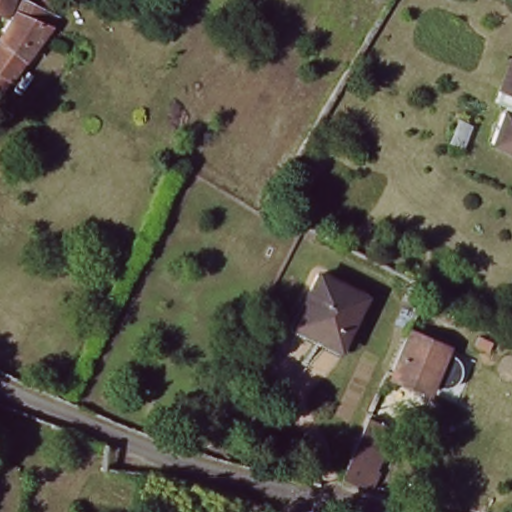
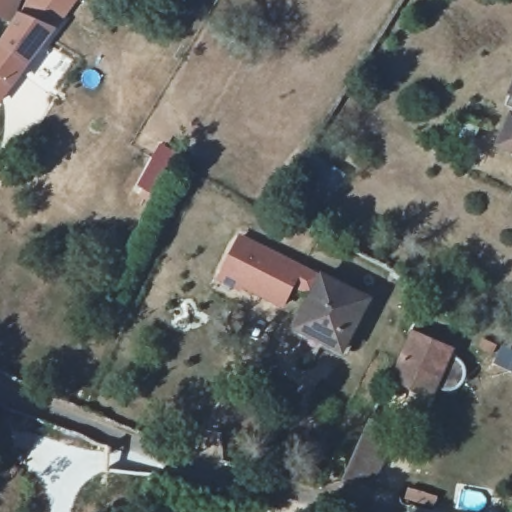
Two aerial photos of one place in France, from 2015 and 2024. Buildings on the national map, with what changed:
unchanged [(15,16),(0,10),(0,0),(21,0),(15,16)]
unchanged [(0,100),(0,46),(6,40),(3,37),(6,32),(27,6),(29,0),(31,0),(65,14),(32,62),(16,82),(3,98),(1,101),(0,100)]
unchanged [(502,102),(512,81),(512,107),(502,102)]
unchanged [(497,142),(512,114),(512,112),(512,149),(497,142)]
new [(293,289),(283,310),(242,289),(240,294),(217,282),(239,234),(318,275),(308,297),(293,289)]
unchanged [(295,325),(318,275),(365,301),(342,347),(295,325)]
unchanged [(450,353),(432,394),(393,378),(400,363),(413,334),(450,353)]
unchanged [(367,422),(395,435),(384,461),(379,459),(374,472),(377,474),(370,489),(343,476),(367,422)]

